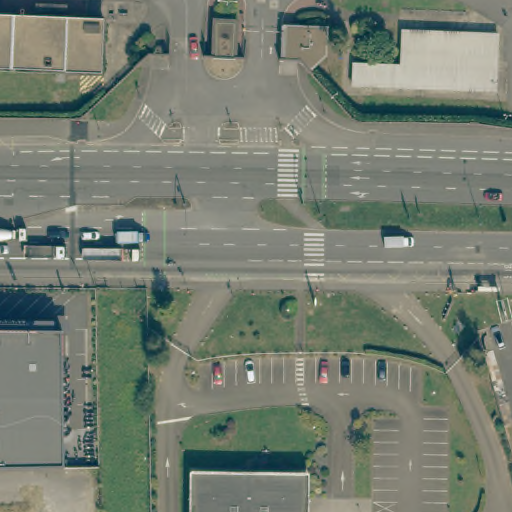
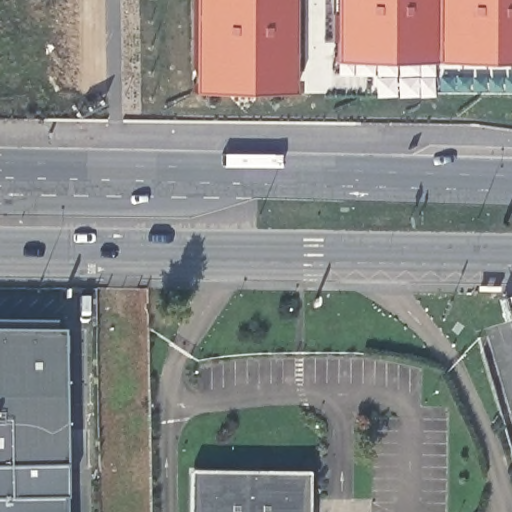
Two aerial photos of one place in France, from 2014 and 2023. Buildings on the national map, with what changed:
new [(291,99),(188,99),(188,0),(292,0),(291,99)]
new [(332,70),(333,0),(512,0),(512,70),(332,70)]
demolished [(104,16),(101,71),(0,66),(0,11),(34,12),(67,14),(104,16)]
demolished [(217,41),(218,25),(233,26),(232,41),(217,41)]
demolished [(327,29),(326,57),(309,72),(298,62),(299,44),(294,43),(295,27),(327,29)]
demolished [(41,465),(41,471),(0,471),(0,327),(42,327),(41,465)]
new [(62,500),(62,512),(0,512),(0,333),(61,335),(62,500)]
unchanged [(288,475),(287,512),(181,512),(181,473),(288,475)]
demolished [(26,512),(0,512),(0,492),(26,492),(26,512)]

